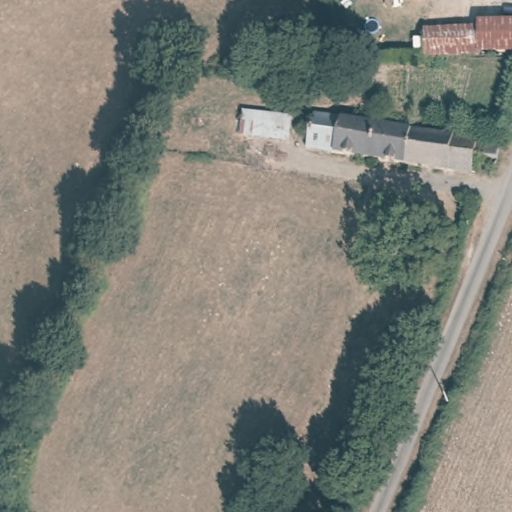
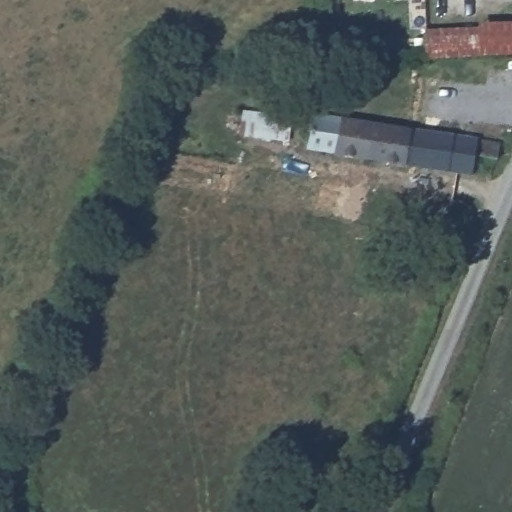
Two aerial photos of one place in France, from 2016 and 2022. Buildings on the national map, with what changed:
unchanged [(422,32),(482,29),(481,22),(512,21),(512,53),(425,57),(422,32)]
unchanged [(362,40),(370,49),(361,59),(353,49),(362,40)]
unchanged [(294,116),(290,143),(240,134),(242,110),(294,116)]
unchanged [(302,136),(300,134),(300,130),(300,126),(303,124),(306,123),(310,123),(313,124),(318,110),(494,143),(490,161),(477,158),(472,177),(308,146),(310,138),(305,139),(302,136)]

